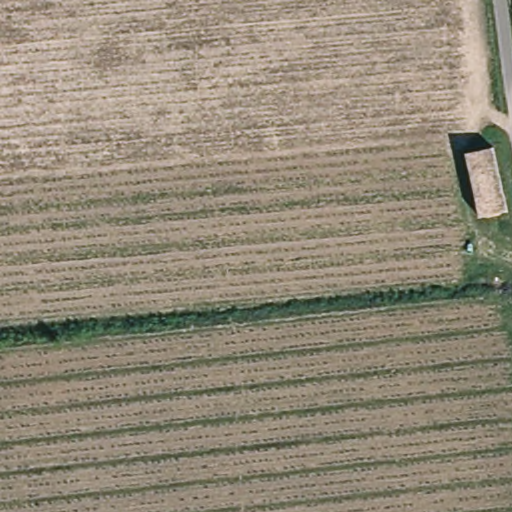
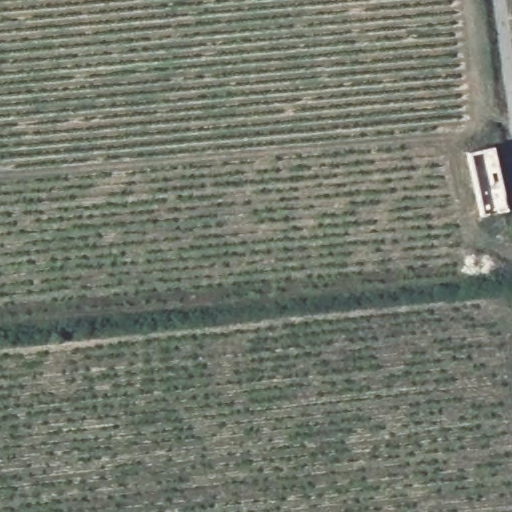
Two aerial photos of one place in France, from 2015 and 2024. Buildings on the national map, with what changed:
unchanged [(492,149),(509,213),(482,218),(467,154),(492,149)]

